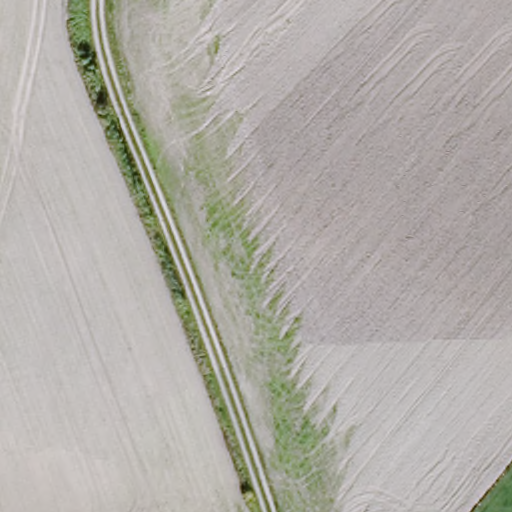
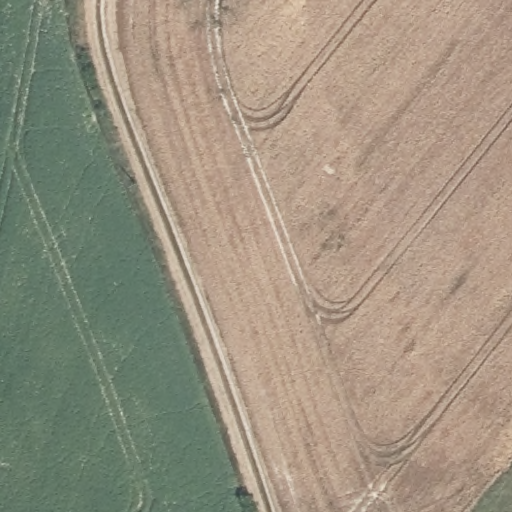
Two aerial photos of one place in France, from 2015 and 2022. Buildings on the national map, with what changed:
[]

